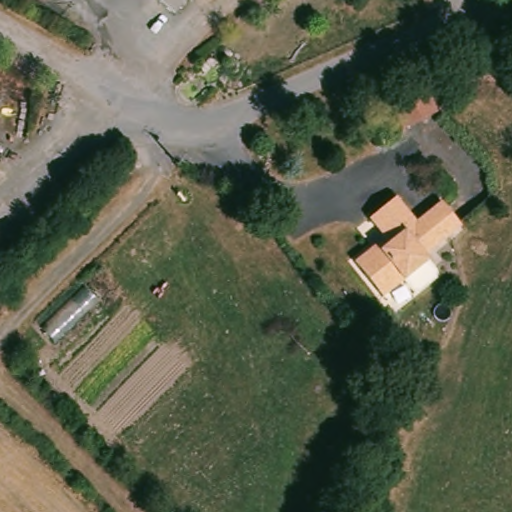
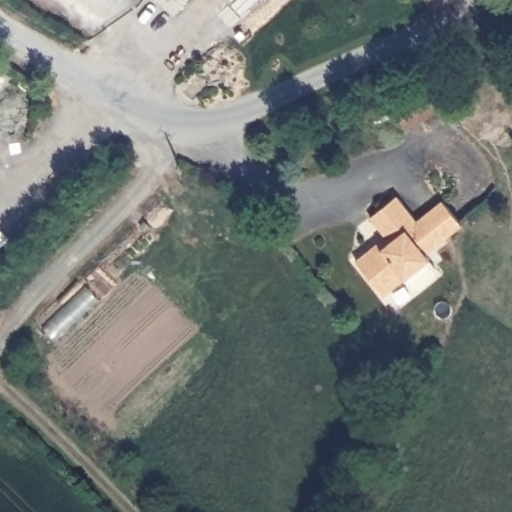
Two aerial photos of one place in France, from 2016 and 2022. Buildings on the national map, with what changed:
unchanged [(158,0),(187,0),(174,15),(158,0)]
unchanged [(415,84),(427,106),(394,122),(383,99),(415,84)]
unchanged [(386,237),(371,218),(397,196),(417,221),(442,201),(462,225),(425,254),(429,260),(428,261),(436,271),(436,277),(419,290),(413,290),(404,280),(384,296),(356,261),(386,237)]

